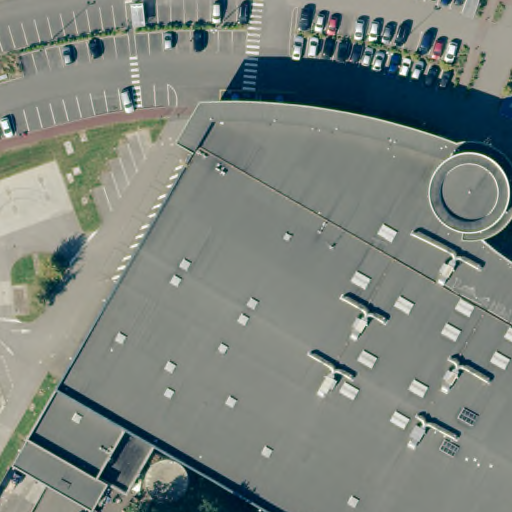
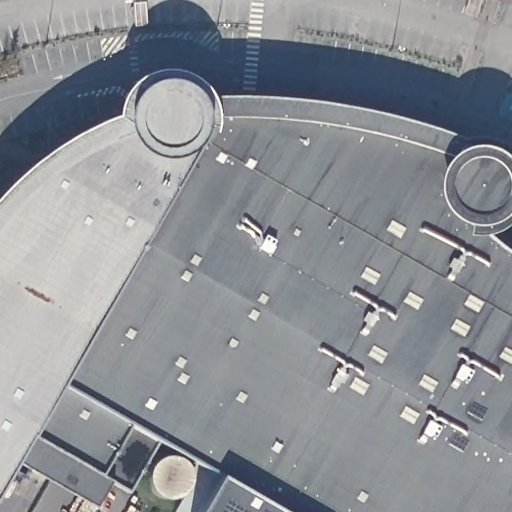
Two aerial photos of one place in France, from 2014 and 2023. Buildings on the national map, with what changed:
new [(32,428),(19,451),(0,484),(0,190),(23,168),(65,139),(112,116),(121,90),(132,80),(147,73),(158,71),(169,71),(180,73),(189,78),(199,86),(204,94),(210,108),(217,107),(32,428)]
unchanged [(243,107),(293,110),(346,117),(398,129),(438,141),(464,150),(468,149),(475,148),(485,149),(491,151),(497,156),(503,164),(506,171),(507,179),(506,187),(503,195),(498,201),(490,207),(484,209),(476,210),(480,218),(492,230),(507,242),(512,245),(512,512),(299,512),(146,421),(113,475),(32,428),(217,107),(243,107)]
unchanged [(113,475),(99,499),(19,451),(32,428),(113,475)]
new [(217,477),(220,465),(299,512),(198,512),(217,477)]

